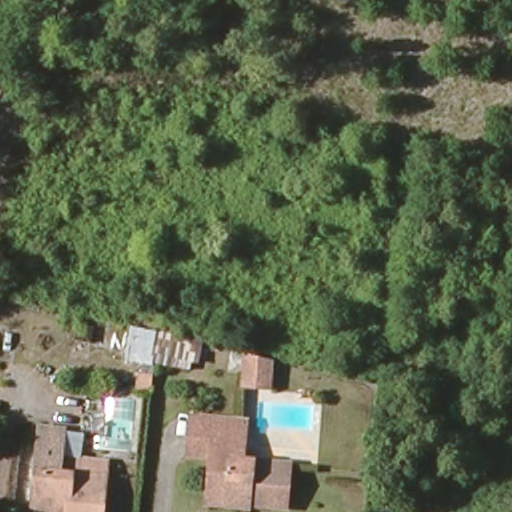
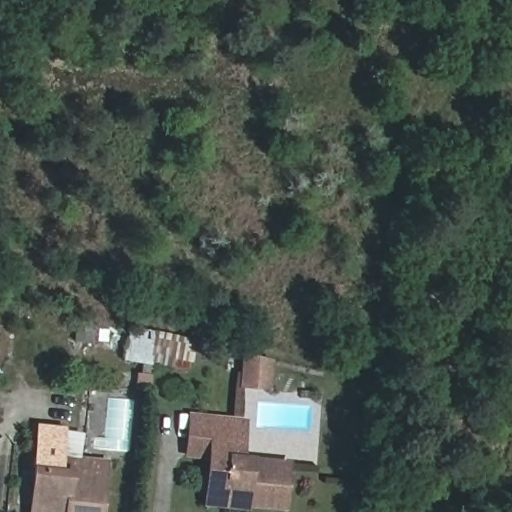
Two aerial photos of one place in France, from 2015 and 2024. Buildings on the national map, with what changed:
unchanged [(126,359),(130,324),(199,339),(191,373),(126,359)]
unchanged [(273,396),(248,393),(252,363),(277,369),(273,396)]
unchanged [(211,503),(213,493),(219,453),(197,449),(199,434),(202,415),(248,422),(246,437),(249,437),(246,459),(290,466),(285,508),(250,503),(249,509),(211,503)]
unchanged [(32,493),(40,443),(44,418),(67,423),(63,446),(61,460),(106,468),(101,512),(53,512),(30,508),(32,493)]

